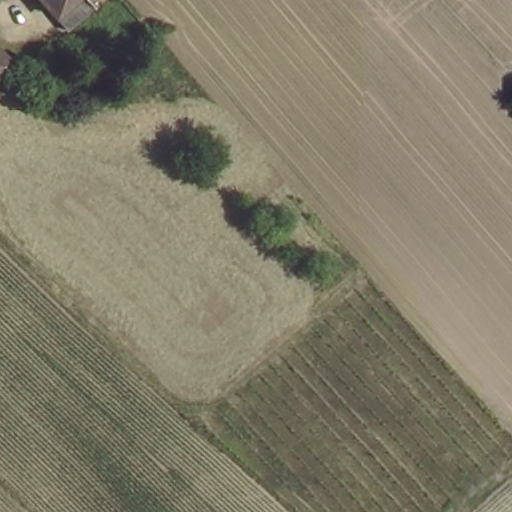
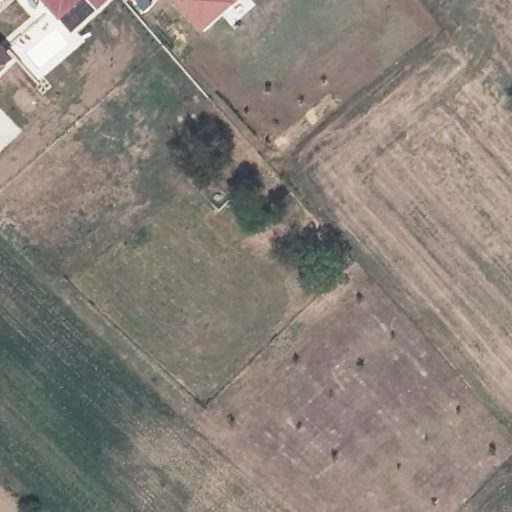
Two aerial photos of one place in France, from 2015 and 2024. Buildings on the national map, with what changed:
unchanged [(38,0),(111,0),(69,37),(38,0)]
new [(169,0),(171,0),(170,1),(169,0)]
new [(240,0),(200,35),(170,1),(171,0),(240,0)]
unchanged [(0,77),(0,62),(7,70),(0,77)]

